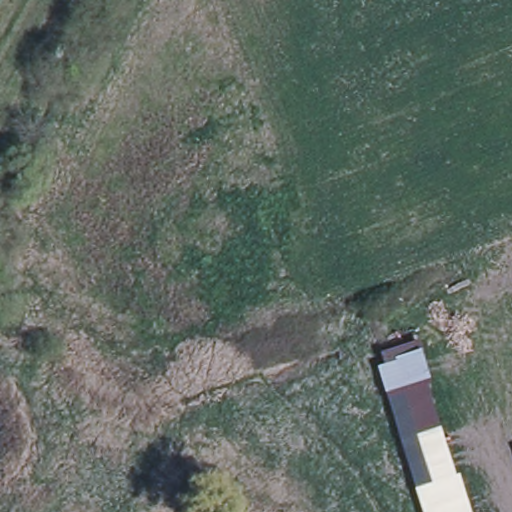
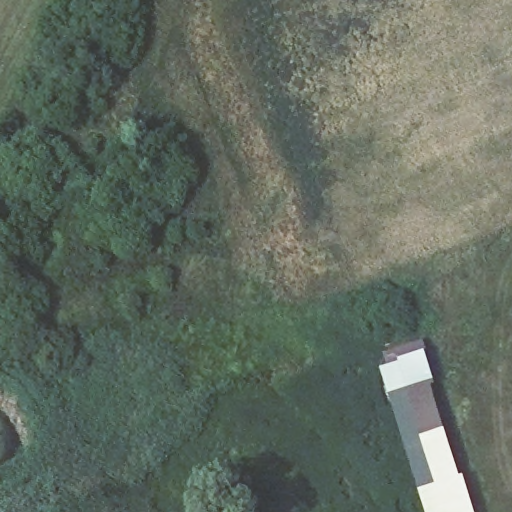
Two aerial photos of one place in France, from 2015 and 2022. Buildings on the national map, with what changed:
unchanged [(470,512),(431,512),(385,363),(421,351),(470,512)]

